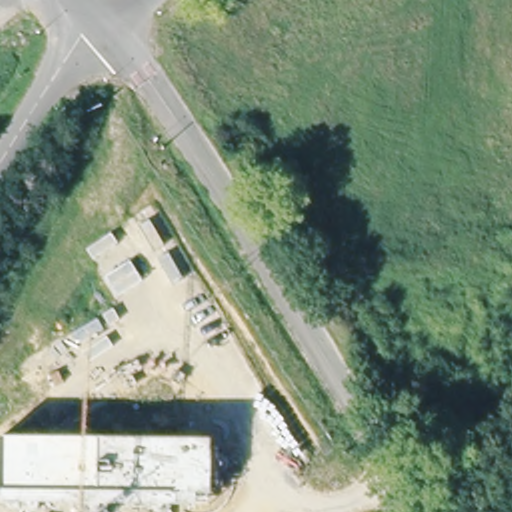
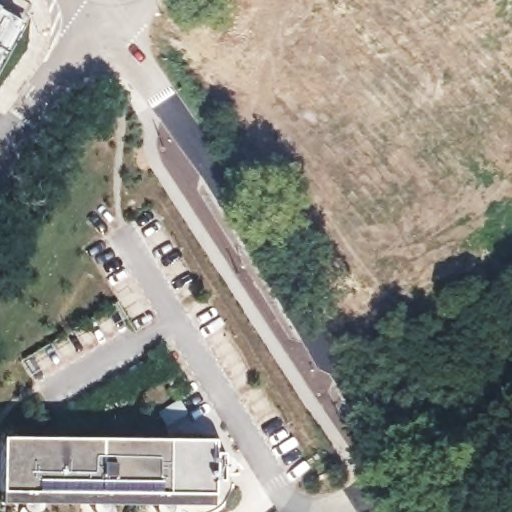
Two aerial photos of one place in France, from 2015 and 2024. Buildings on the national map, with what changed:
new [(21,24),(0,61),(0,11),(21,24)]
unchanged [(212,437),(210,501),(0,496),(0,437),(212,437)]

